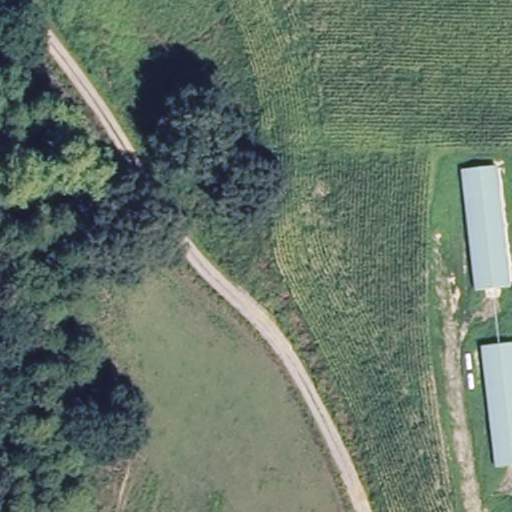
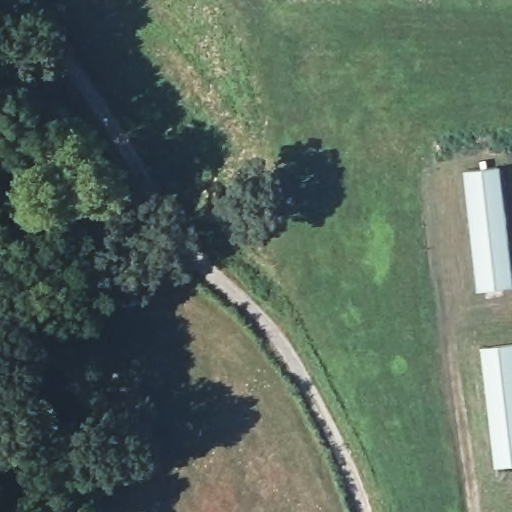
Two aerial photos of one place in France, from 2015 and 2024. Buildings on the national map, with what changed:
unchanged [(501,165),(508,285),(469,286),(463,164),(501,165)]
unchanged [(512,342),(512,467),(494,468),(486,343),(512,342)]

